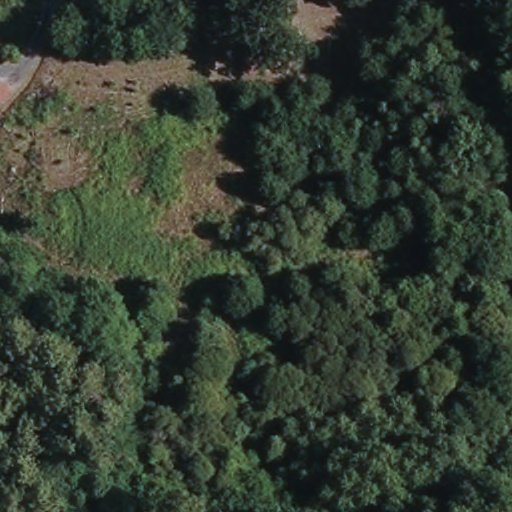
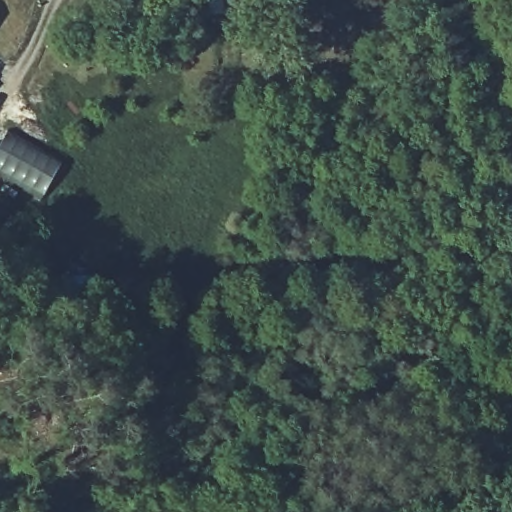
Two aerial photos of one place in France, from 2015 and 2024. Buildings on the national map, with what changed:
unchanged [(245,7),(224,10),(223,7),(212,9),(210,0),(244,0),(245,7)]
new [(3,132),(60,166),(41,200),(0,177),(0,136),(3,132)]

